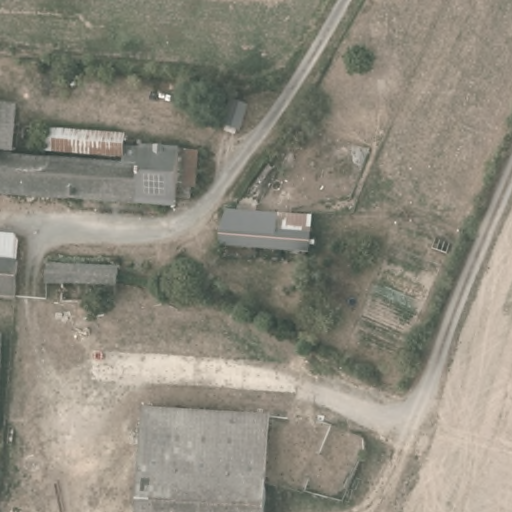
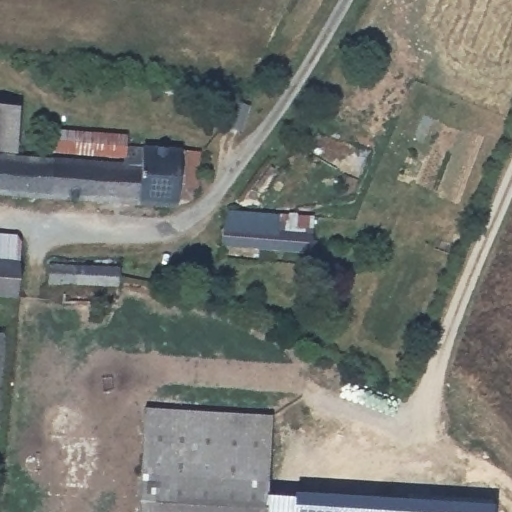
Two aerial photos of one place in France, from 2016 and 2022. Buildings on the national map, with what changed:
unchanged [(246,101),(242,123),(224,122),(227,98),(241,98),(246,101)]
unchanged [(17,153),(0,151),(0,106),(19,108),(17,153)]
unchanged [(122,163),(62,159),(62,130),(122,134),(122,146),(122,163)]
unchanged [(62,159),(122,163),(122,146),(199,149),(198,187),(191,186),(190,198),(178,198),(177,204),(75,198),(0,194),(0,156),(27,158),(62,159)]
unchanged [(313,217),(311,235),(310,250),(221,243),(222,216),(227,209),(240,211),(281,214),(313,217)]
unchanged [(0,234),(8,234),(19,237),(17,259),(0,258),(0,234)]
unchanged [(0,258),(17,259),(17,275),(16,297),(0,295),(0,258)]
unchanged [(114,286),(47,283),(49,260),(120,264),(119,286),(114,286)]
unchanged [(0,334),(1,334),(1,376),(0,397),(0,334)]
unchanged [(266,512),(139,512),(146,409),(272,416),(266,512)]
new [(292,492),(492,506),(492,512),(291,512),(292,492)]

